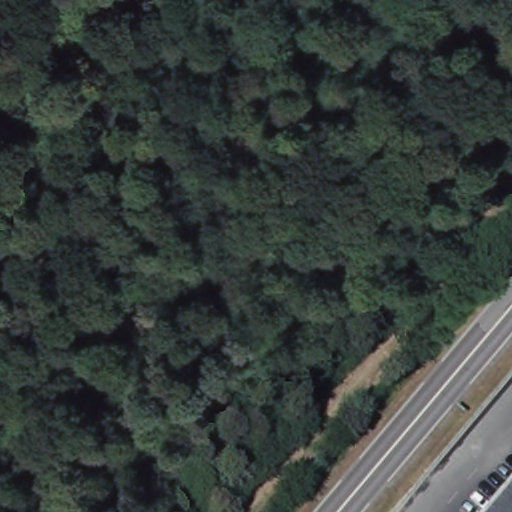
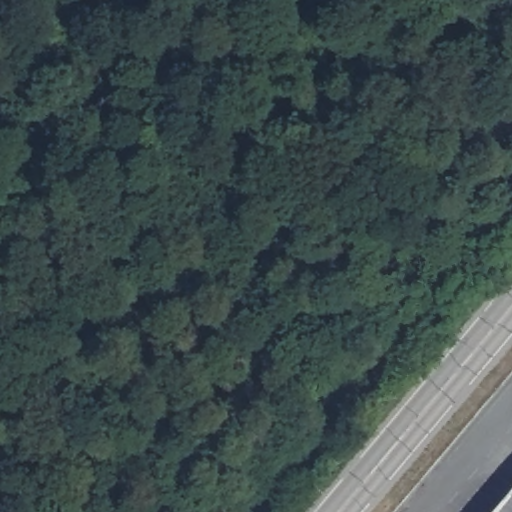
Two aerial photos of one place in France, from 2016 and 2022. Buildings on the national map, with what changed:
unchanged [(492,512),(512,490),(512,512),(492,512)]

